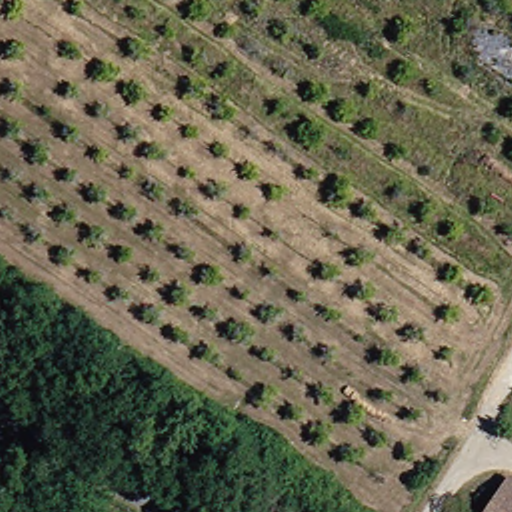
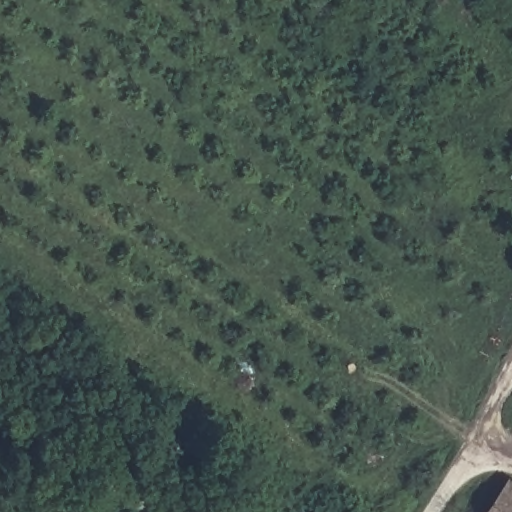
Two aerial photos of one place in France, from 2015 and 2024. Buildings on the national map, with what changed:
unchanged [(507,480),(512,483),(512,512),(487,512),(507,480)]

